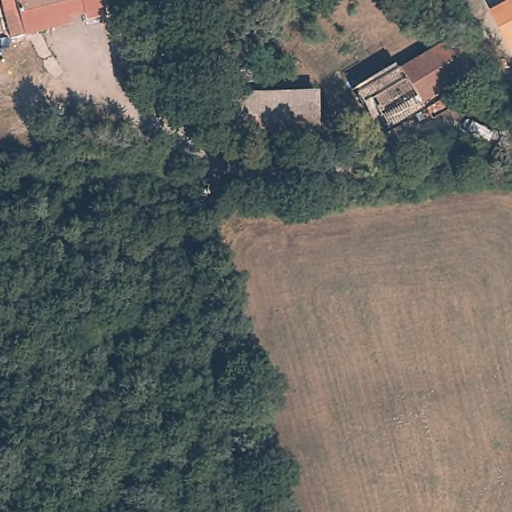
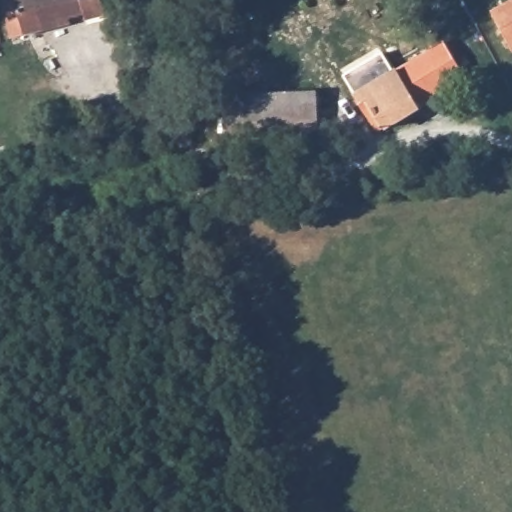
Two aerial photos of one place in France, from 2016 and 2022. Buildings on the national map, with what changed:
unchanged [(107,0),(110,12),(89,17),(87,12),(41,24),(44,31),(26,35),(10,40),(0,2),(0,0),(107,0)]
unchanged [(512,3),(512,51),(490,15),(512,3)]
unchanged [(365,84),(405,63),(407,68),(440,50),(445,57),(446,55),(450,53),(454,53),(457,55),(469,77),(381,124),(376,114),(371,117),(362,97),(366,95),(370,93),(365,84)]
unchanged [(222,133),(221,97),(295,95),(313,95),(312,132),(304,132),(222,133)]

